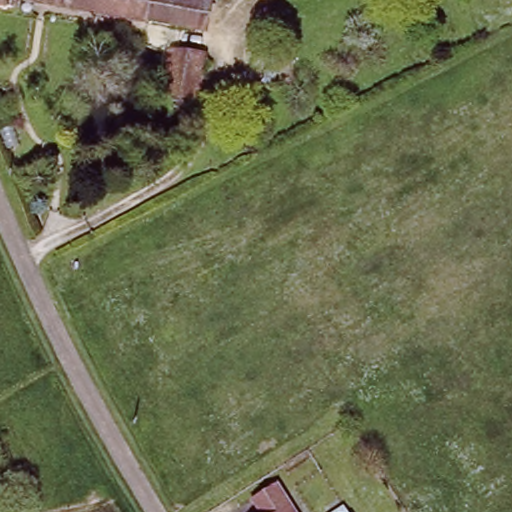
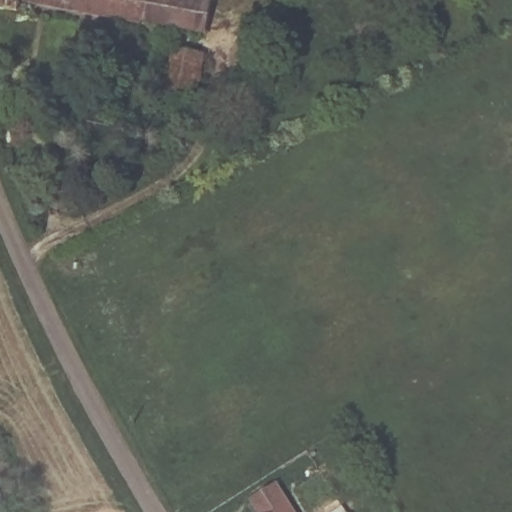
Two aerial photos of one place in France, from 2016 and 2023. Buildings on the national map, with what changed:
unchanged [(0,6),(0,0),(15,0),(12,9),(0,6)]
unchanged [(55,0),(53,7),(24,0),(55,0)]
unchanged [(131,0),(126,24),(53,7),(55,0),(131,0)]
unchanged [(131,0),(212,0),(192,100),(160,94),(172,37),(125,26),(126,24),(131,0)]
unchanged [(10,129),(0,130),(0,131),(0,101),(2,100),(10,129)]
unchanged [(252,499),(277,484),(294,512),(260,512),(252,499)]

